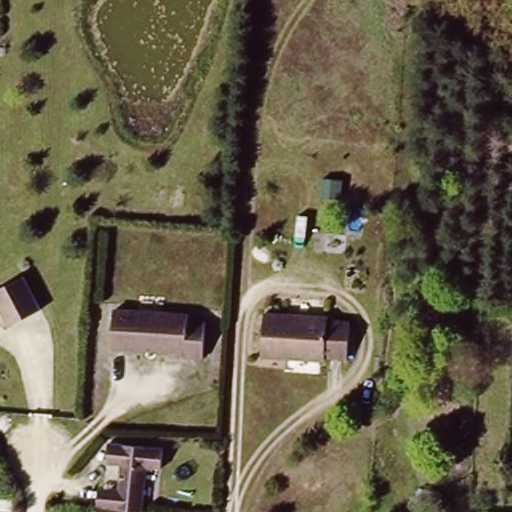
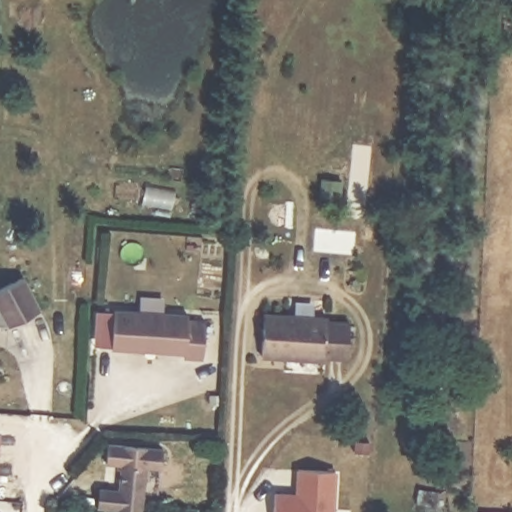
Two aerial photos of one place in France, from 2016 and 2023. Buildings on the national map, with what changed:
unchanged [(23,277),(39,309),(6,324),(0,324),(0,289),(23,277)]
unchanged [(307,355),(260,352),(263,307),(310,309),(307,355)]
unchanged [(349,349),(323,347),(322,356),(307,355),(310,309),(325,310),(325,314),(351,315),(349,349)]
unchanged [(188,318),(187,322),(207,323),(205,360),(185,359),(185,353),(108,348),(111,313),(188,318)]
unchanged [(100,504),(104,440),(158,442),(159,463),(146,462),(143,507),(100,504)]
new [(295,492),(296,469),(336,470),(335,512),(273,512),(275,491),(295,492)]
new [(504,512),(473,512),(473,510),(504,512)]

